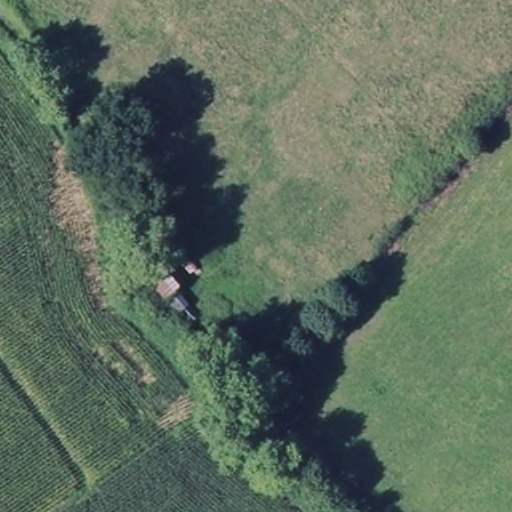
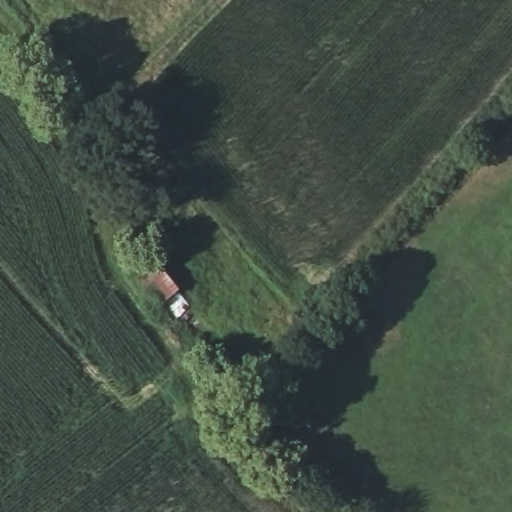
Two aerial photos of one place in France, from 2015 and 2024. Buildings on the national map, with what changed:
unchanged [(213,365),(131,285),(154,262),(195,304),(189,309),(229,358),(213,365)]

